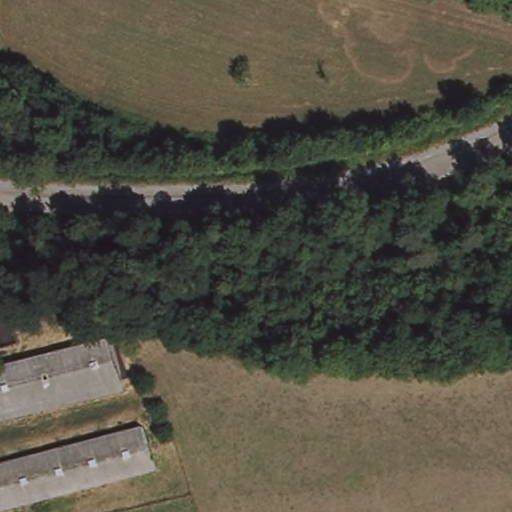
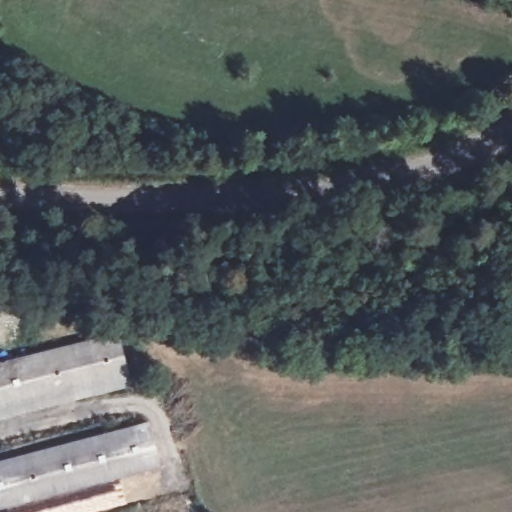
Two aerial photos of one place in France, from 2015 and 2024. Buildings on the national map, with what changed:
unchanged [(0,415),(0,368),(113,335),(127,377),(0,415)]
unchanged [(0,511),(0,464),(150,423),(162,465),(0,511)]

